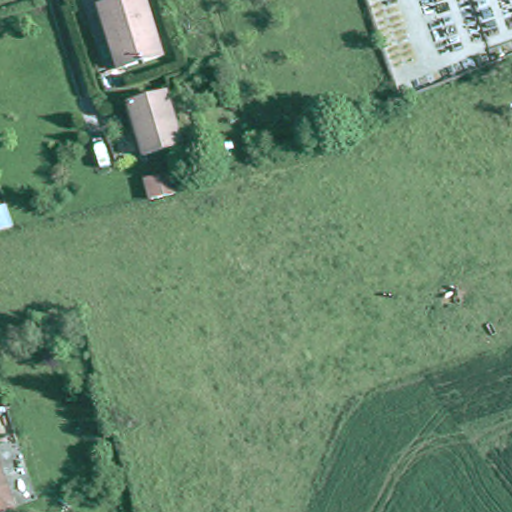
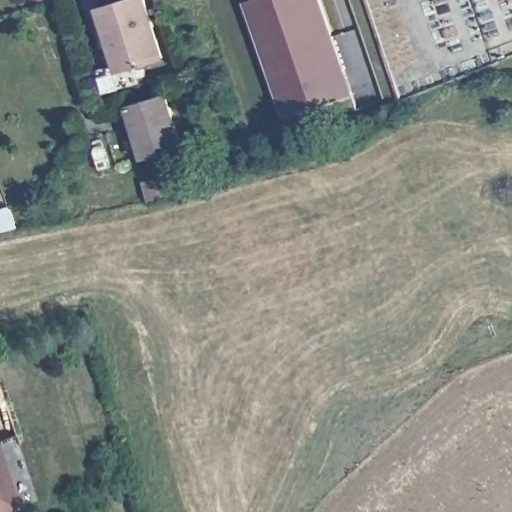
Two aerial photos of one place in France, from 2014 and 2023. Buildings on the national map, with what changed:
unchanged [(123,0),(140,0),(157,55),(120,65),(109,32),(102,33),(95,9),(123,0)]
new [(354,94),(283,118),(243,0),(322,0),(354,94)]
demolished [(226,59),(240,54),(245,69),(231,74),(226,59)]
unchanged [(138,157),(130,131),(123,108),(158,97),(165,119),(173,147),(138,157)]
unchanged [(142,204),(140,182),(161,178),(165,200),(142,204)]
unchanged [(7,230),(0,231),(0,210),(7,230)]
unchanged [(0,511),(0,487),(7,509),(0,511)]

